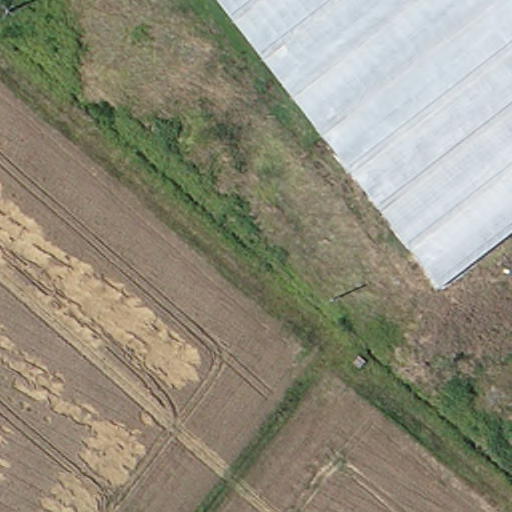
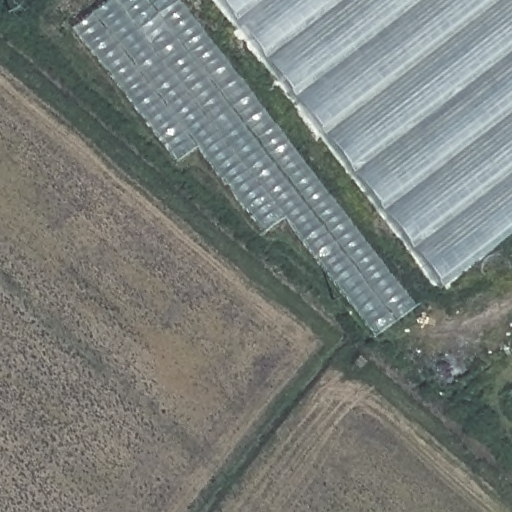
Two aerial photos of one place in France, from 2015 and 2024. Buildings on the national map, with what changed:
new [(372,336),(281,218),(259,234),(193,149),(174,164),(68,29),(107,0),(173,0),(411,308),(372,336)]
unchanged [(223,0),(512,0),(512,237),(446,288),(223,0)]
new [(512,389),(512,403),(505,394),(512,389)]

